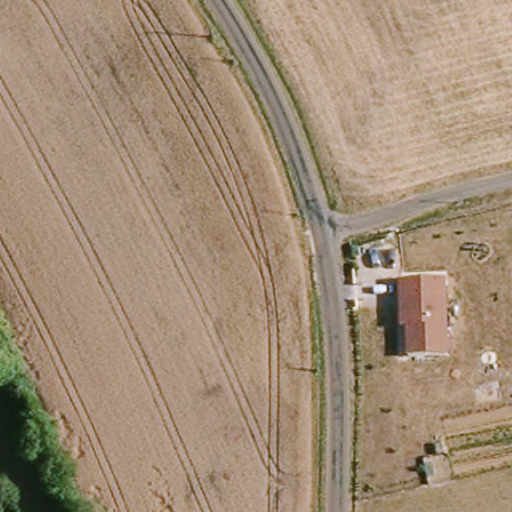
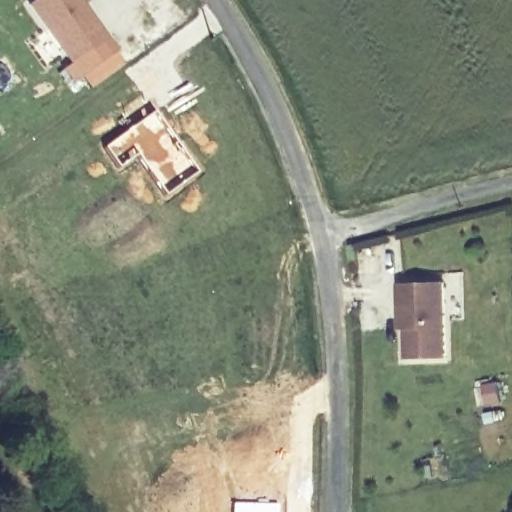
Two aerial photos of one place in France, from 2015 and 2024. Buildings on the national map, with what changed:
new [(90,89),(81,77),(70,84),(60,71),(69,63),(27,3),(32,0),(80,0),(116,52),(124,65),(90,89)]
new [(154,109),(192,165),(161,187),(134,148),(116,161),(104,146),(154,109)]
unchanged [(449,281),(450,357),(410,358),(409,326),(400,325),(400,282),(449,281)]

